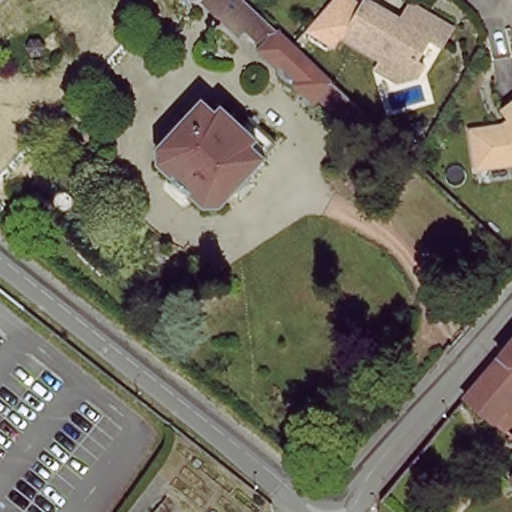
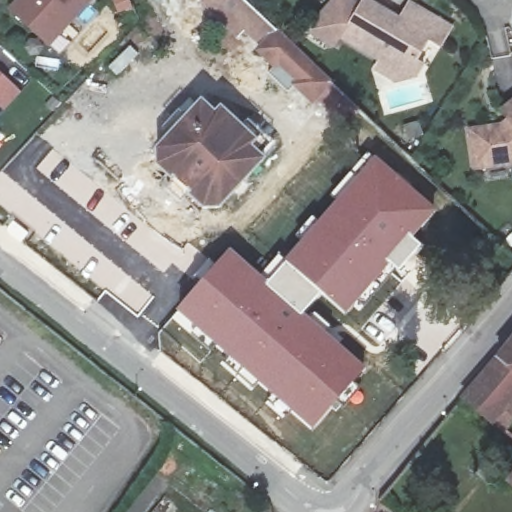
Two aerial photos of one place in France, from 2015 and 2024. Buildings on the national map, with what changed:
unchanged [(12,11),(22,0),(90,0),(49,45),(12,11)]
unchanged [(213,0),(241,0),(260,18),(247,32),(240,39),(207,7),(213,0)]
unchanged [(464,56),(452,49),(435,77),(421,80),(367,46),(364,45),(357,55),(330,38),(362,1),(385,16),(390,9),(424,30),(434,14),(440,16),(475,39),(464,56)]
unchanged [(260,18),(360,113),(347,128),(322,103),(317,109),(299,91),(293,91),(288,90),(282,86),(280,81),(278,76),(278,73),(261,56),(267,51),(247,32),(260,18)]
new [(0,115),(0,78),(18,95),(0,115)]
unchanged [(500,126),(510,121),(502,110),(512,101),(512,174),(475,177),(469,129),(500,126)]
unchanged [(242,129),(249,121),(272,141),(259,155),(264,160),(218,210),(205,210),(157,166),(157,153),(202,103),(216,116),(222,110),(242,129)]
new [(334,200),(330,196),(370,153),(436,210),(412,238),(422,246),(398,274),(390,268),(345,316),(321,296),(283,260),(334,200)]
new [(230,249),(260,275),(267,279),(265,282),(302,316),(305,312),(365,367),(311,431),(255,385),(237,370),(175,311),(230,249)]
new [(278,256),(283,260),(321,296),(305,312),(302,316),(265,282),(267,279),(260,275),(278,256)]
unchanged [(508,415),(512,419),(512,441),(470,404),(512,354),(512,410),(508,415)]

